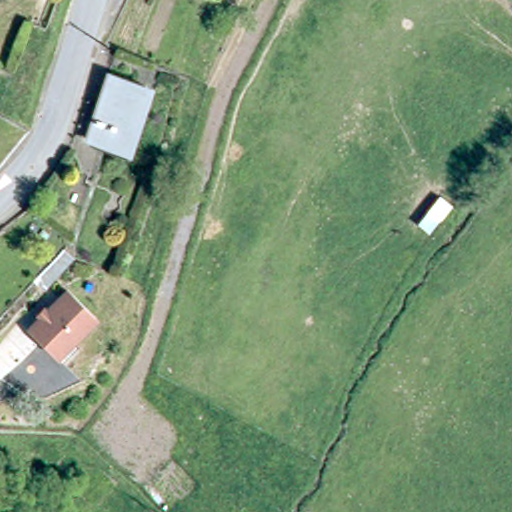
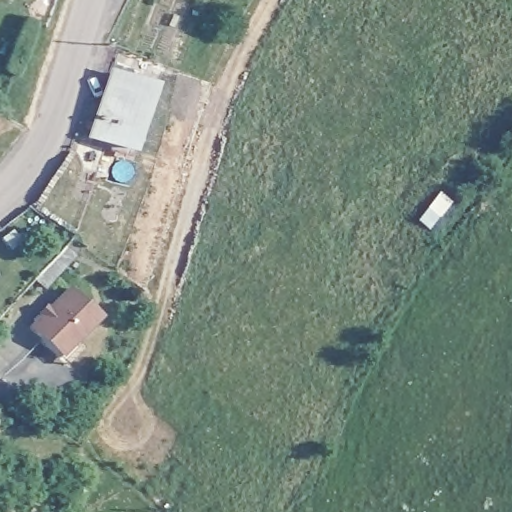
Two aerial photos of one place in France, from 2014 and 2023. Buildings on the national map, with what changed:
unchanged [(115,82),(150,95),(130,158),(95,145),(115,82)]
unchanged [(67,254),(73,265),(48,292),(39,284),(67,254)]
unchanged [(69,369),(62,362),(33,333),(72,293),(101,323),(78,346),(85,353),(69,369)]

